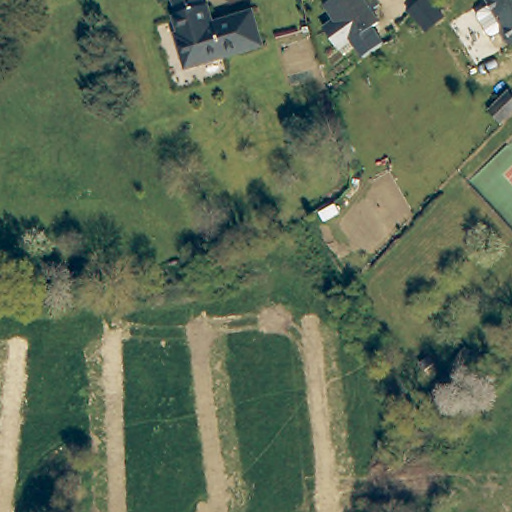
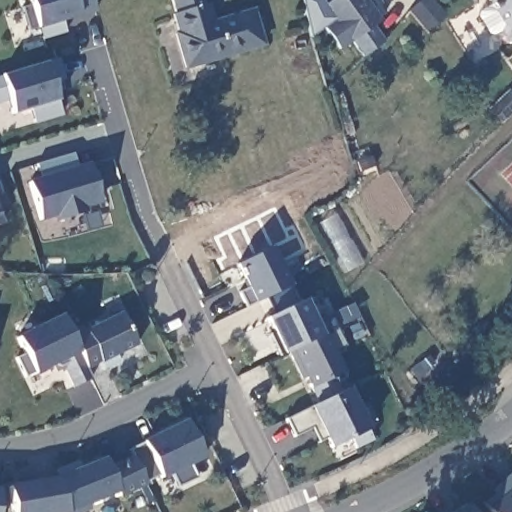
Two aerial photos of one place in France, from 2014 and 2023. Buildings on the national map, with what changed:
new [(77,17),(62,23),(65,33),(43,41),(38,28),(30,0),(92,0),(96,12),(77,17)]
unchanged [(209,23),(249,11),(259,44),(183,68),(173,34),(176,33),(170,15),(173,14),(169,0),(200,0),(201,5),(204,5),(209,23)]
unchanged [(350,44),(338,52),(323,31),(335,22),(326,8),(334,0),(362,0),(378,25),(350,44)]
new [(424,0),(432,0),(443,11),(426,28),(411,13),(424,0)]
unchanged [(498,31),(493,30),(482,13),(483,8),(495,1),(495,0),(512,0),(512,37),(505,27),(498,31)]
new [(53,83),(57,99),(61,115),(32,123),(27,109),(11,113),(8,99),(0,101),(0,76),(2,75),(46,62),(58,55),(64,79),(53,83)]
unchanged [(509,91),(512,94),(512,114),(501,125),(488,110),(509,91)]
new [(39,177),(35,166),(73,153),(77,165),(87,162),(100,201),(84,207),(85,212),(54,220),(54,216),(39,219),(29,180),(39,177)]
new [(2,223),(0,224),(0,214),(2,223)]
new [(272,248),(290,288),(246,308),(239,292),(246,289),(235,264),(272,248)]
new [(302,300),(313,324),(329,315),(342,310),(348,324),(334,329),(324,335),(344,374),(309,391),(288,351),(281,355),(263,317),(302,300)]
new [(69,340),(121,315),(137,348),(86,370),(91,381),(73,389),(64,370),(54,374),(50,366),(34,374),(25,378),(14,357),(21,354),(13,338),(59,316),(69,340)]
new [(346,388),(367,432),(372,444),(355,452),(354,450),(348,441),(329,450),(324,442),(318,443),(310,430),(293,437),(284,418),(305,407),(346,388)]
new [(104,459),(109,468),(131,457),(128,450),(142,443),(141,440),(183,420),(203,461),(189,466),(195,478),(177,487),(170,475),(161,479),(145,487),(118,499),(115,494),(72,512),(12,512),(7,485),(51,479),(104,459)]
new [(491,490),(512,474),(512,512),(490,512),(483,504),(495,496),(491,490)]
new [(454,512),(465,506),(469,512),(454,512)]

